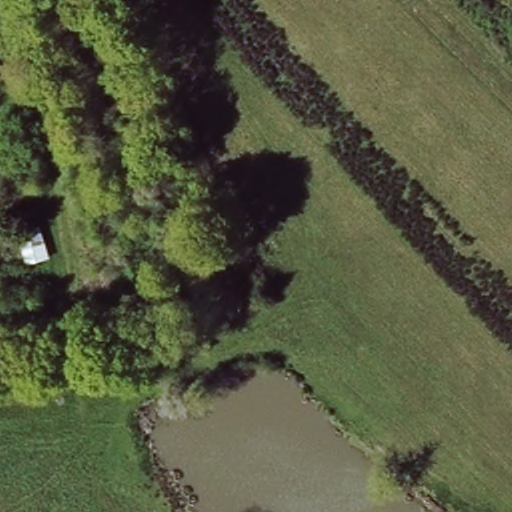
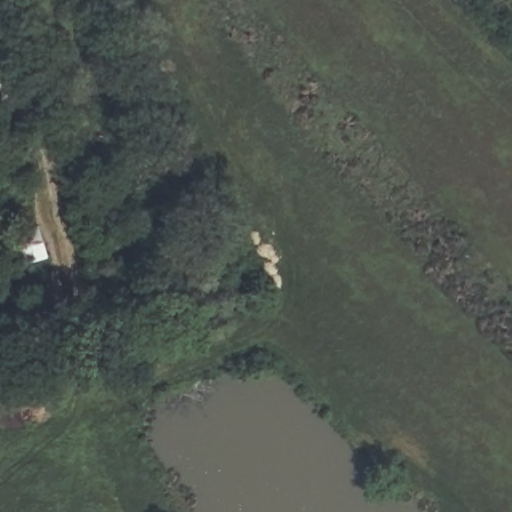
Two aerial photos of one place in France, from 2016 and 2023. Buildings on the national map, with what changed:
unchanged [(41,228),(51,263),(24,269),(13,234),(41,228)]

